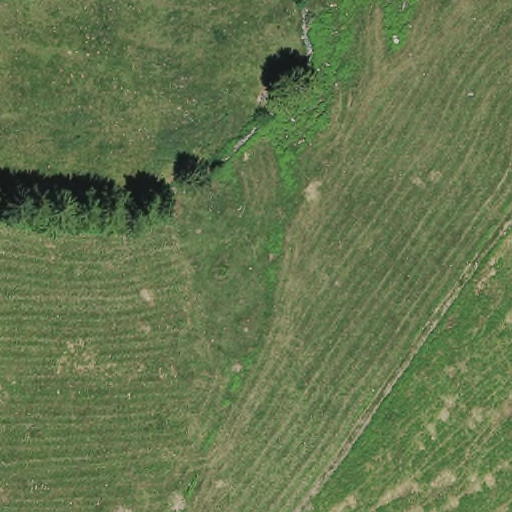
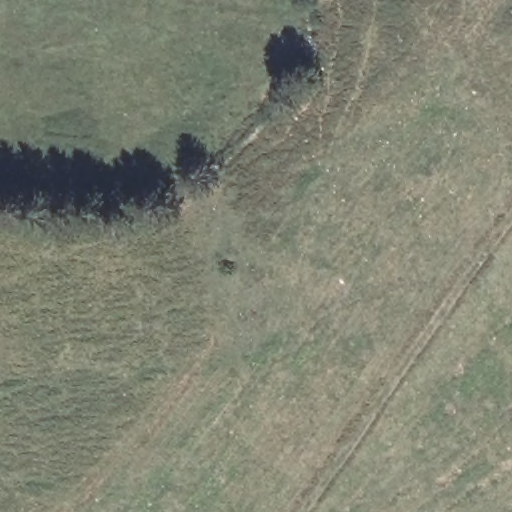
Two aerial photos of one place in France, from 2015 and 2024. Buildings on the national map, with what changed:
[]

